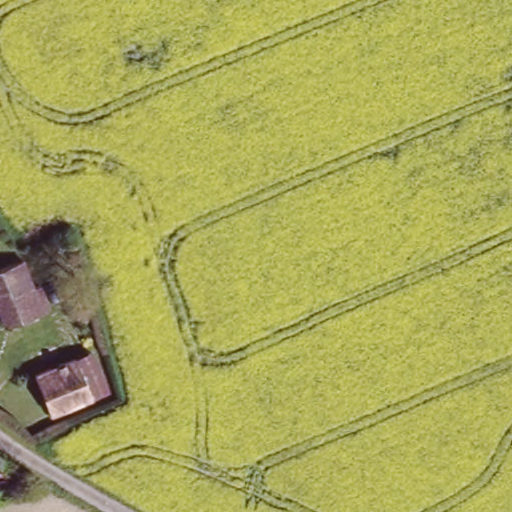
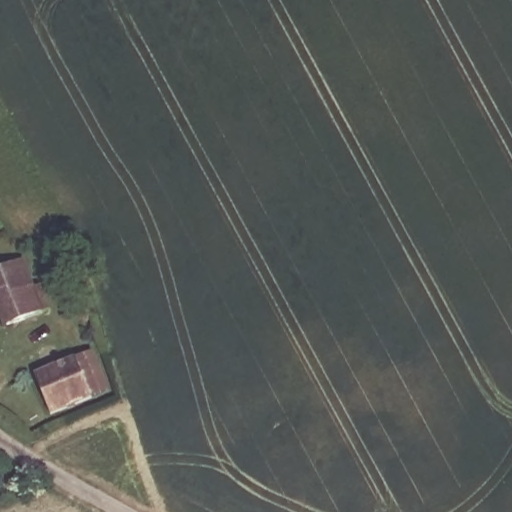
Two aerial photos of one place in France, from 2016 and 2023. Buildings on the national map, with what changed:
unchanged [(0,317),(0,270),(19,263),(29,289),(36,287),(47,314),(5,330),(0,317)]
unchanged [(104,392),(47,414),(34,376),(91,356),(104,392)]

